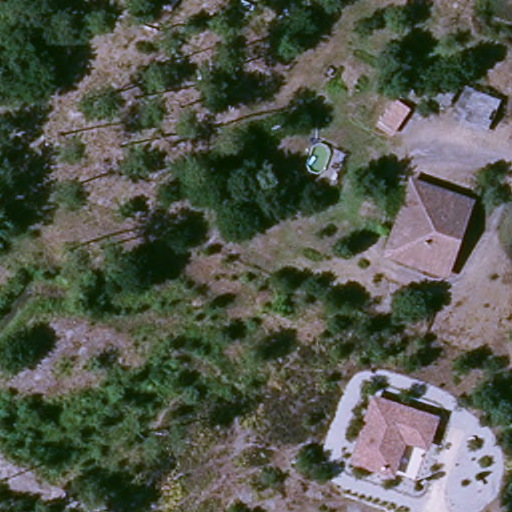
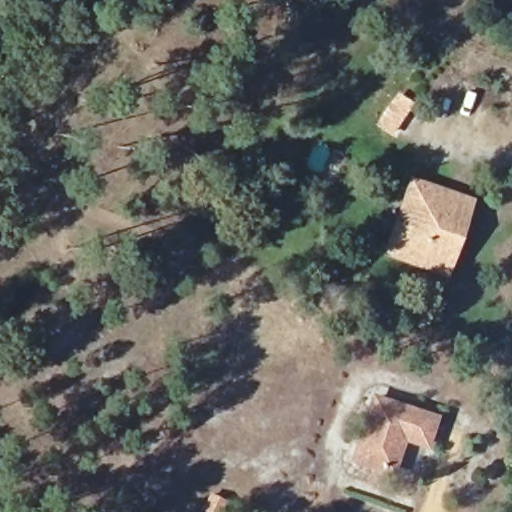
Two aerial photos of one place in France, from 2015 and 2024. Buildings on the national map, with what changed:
unchanged [(493,114),(463,101),(473,72),(505,84),(493,114)]
unchanged [(449,265),(389,244),(397,223),(407,194),(415,171),(474,192),(466,214),(456,244),(449,265)]
unchanged [(438,408),(430,435),(406,428),(395,463),(358,451),(378,388),(438,408)]

